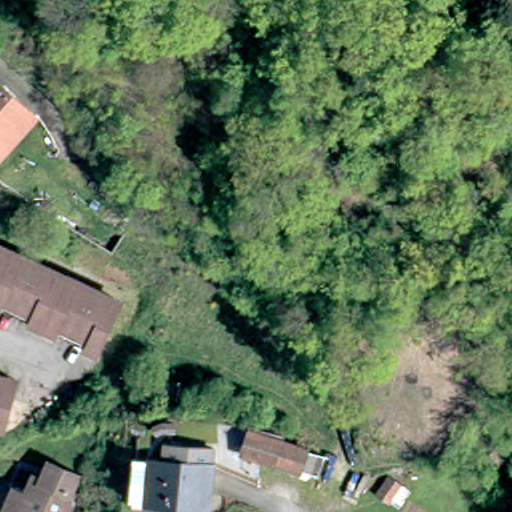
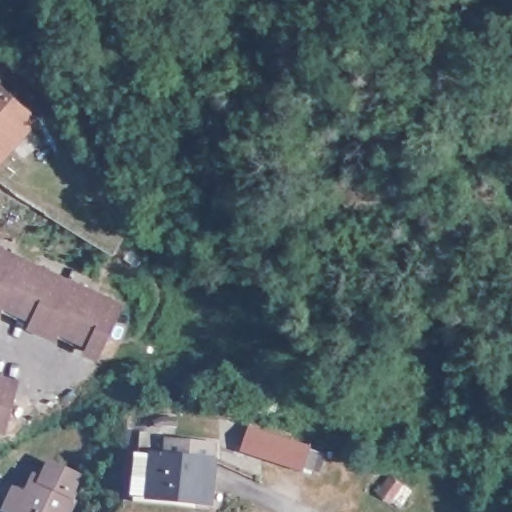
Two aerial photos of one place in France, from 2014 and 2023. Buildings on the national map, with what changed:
unchanged [(0,164),(0,86),(37,121),(0,164)]
unchanged [(0,259),(120,317),(102,358),(0,308),(0,259)]
unchanged [(171,396),(172,380),(190,382),(187,398),(171,396)]
unchanged [(19,397),(12,422),(0,419),(0,382),(21,388),(19,397)]
unchanged [(253,431),(312,452),(306,471),(247,450),(253,431)]
unchanged [(142,460),(169,463),(170,447),(219,451),(215,511),(139,503),(142,460)]
unchanged [(22,486),(30,473),(47,480),(56,465),(83,477),(76,494),(82,496),(74,512),(22,512),(14,508),(22,486)]
unchanged [(387,474),(399,483),(387,499),(385,499),(375,492),(387,474)]

